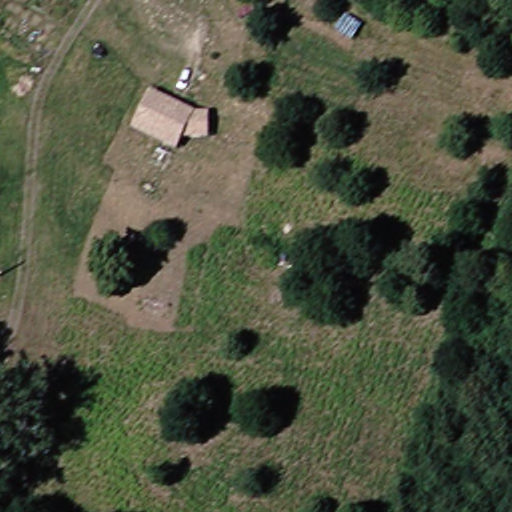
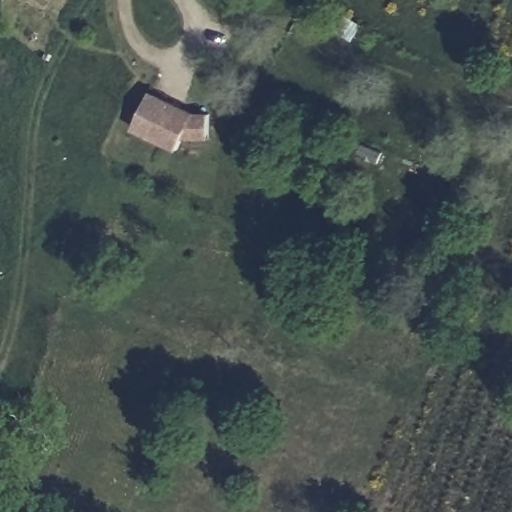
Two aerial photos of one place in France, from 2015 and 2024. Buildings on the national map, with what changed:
unchanged [(152,86),(220,120),(210,140),(185,140),(180,152),(132,130),(152,86)]

